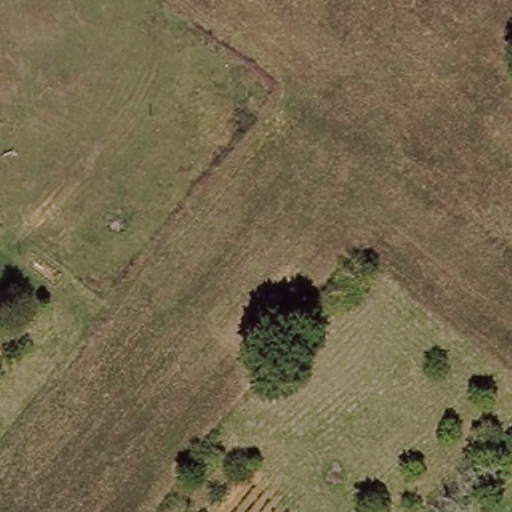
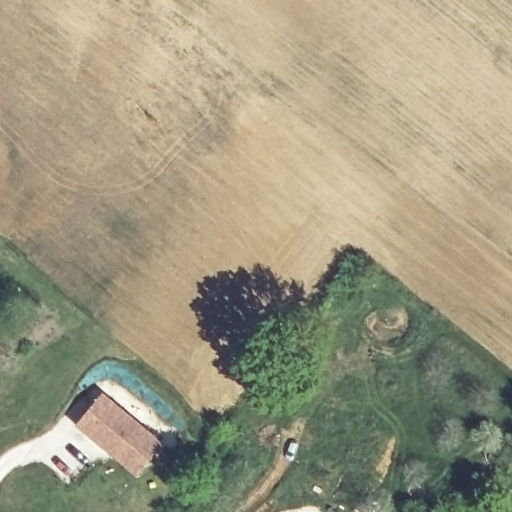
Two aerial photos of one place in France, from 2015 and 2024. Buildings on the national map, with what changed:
new [(105,393),(165,443),(138,474),(78,425),(105,393)]

